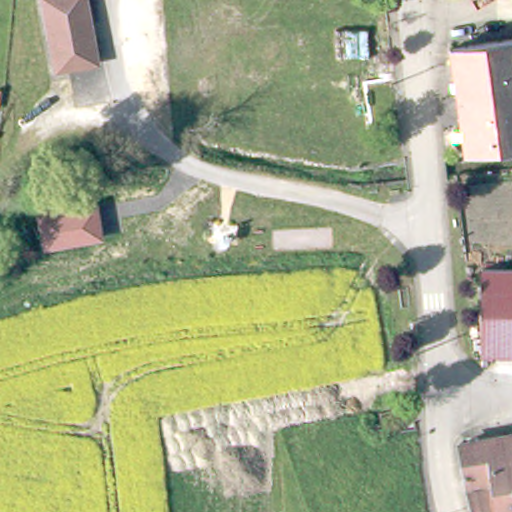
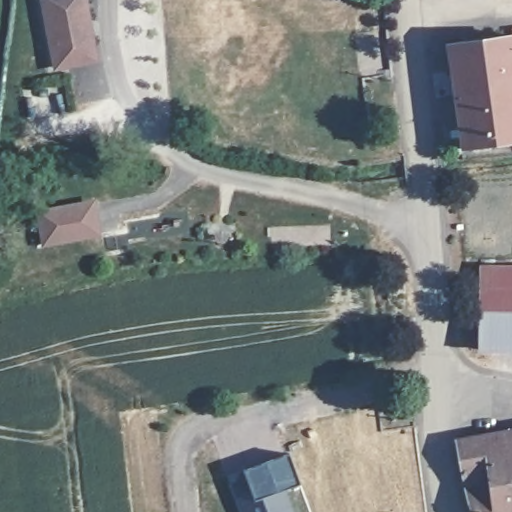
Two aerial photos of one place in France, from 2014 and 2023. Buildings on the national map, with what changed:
unchanged [(39,0),(80,0),(82,9),(92,55),(54,65),(39,0)]
unchanged [(460,47),(512,38),(512,140),(476,146),(460,47)]
unchanged [(102,237),(41,248),(35,208),(96,197),(102,237)]
unchanged [(512,350),(478,348),(483,264),(512,267),(512,350)]
unchanged [(470,484),(462,431),(512,427),(512,512),(477,512),(470,484)]
new [(295,512),(239,512),(229,484),(247,477),(245,469),(288,452),(301,482),(285,488),(295,512)]

